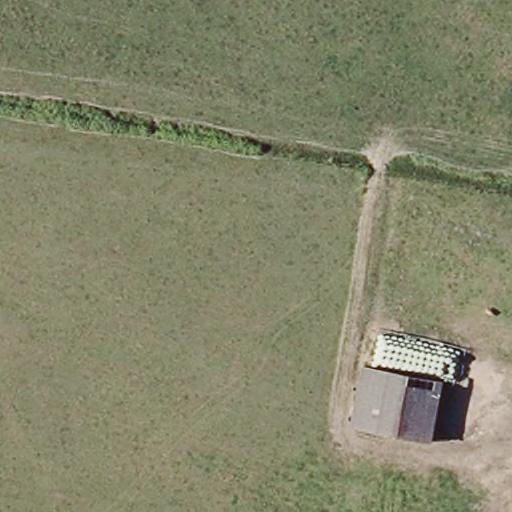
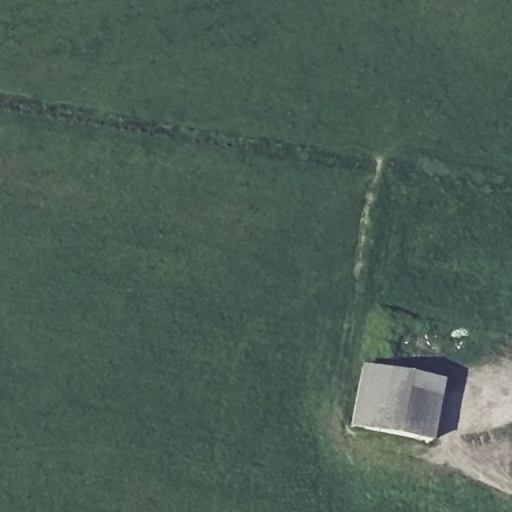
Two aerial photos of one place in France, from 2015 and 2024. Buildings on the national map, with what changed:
unchanged [(359,432),(370,368),(450,382),(438,446),(359,432)]

